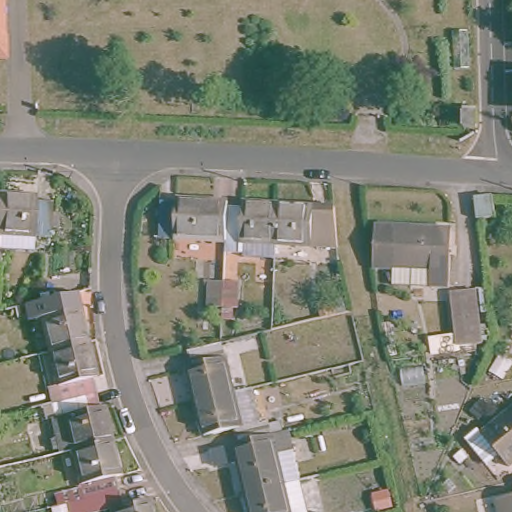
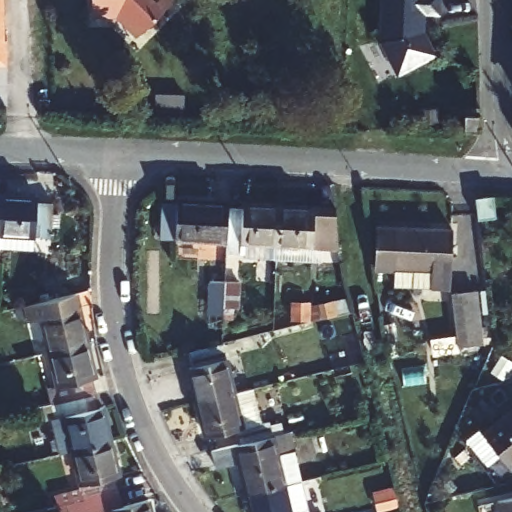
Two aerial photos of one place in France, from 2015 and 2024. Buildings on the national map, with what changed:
new [(141,25),(120,6),(95,6),(94,0),(166,0),(141,25)]
new [(397,75),(381,42),(382,0),(440,0),(439,14),(422,14),(424,34),(435,56),(397,75)]
unchanged [(0,36),(5,35),(4,63),(0,63),(0,36)]
new [(157,105),(158,90),(172,90),(187,91),(186,106),(171,105),(157,105)]
unchanged [(22,202),(37,203),(36,238),(19,238),(17,251),(0,250),(0,197),(21,198),(22,202)]
unchanged [(215,203),(214,239),(161,237),(163,197),(215,200),(215,203)]
unchanged [(507,201),(507,224),(485,224),(483,199),(507,201)]
unchanged [(235,204),(236,201),(266,202),(264,242),(214,239),(215,203),(235,204)]
unchanged [(301,204),(302,207),(317,207),(325,245),(264,242),(266,202),(301,204)]
unchanged [(394,259),(377,258),(377,218),(451,221),(450,277),(432,277),(394,276),(394,259)]
unchanged [(192,278),(207,278),(221,278),(222,304),(206,304),(191,304),(192,278)]
unchanged [(427,327),(451,327),(451,282),(473,282),(476,336),(428,338),(427,327)]
unchanged [(74,309),(78,309),(87,341),(47,351),(39,317),(26,319),(22,305),(70,293),(74,309)]
unchanged [(95,373),(90,376),(93,390),(50,401),(46,385),(55,383),(47,351),(87,341),(95,373)]
unchanged [(217,341),(229,390),(188,400),(179,367),(184,364),(180,350),(217,341)]
unchanged [(229,390),(249,385),(256,417),(263,416),(267,433),(232,441),(229,425),(197,432),(188,400),(229,390)]
unchanged [(93,390),(97,406),(102,405),(110,438),(71,448),(59,451),(50,415),(53,414),(50,401),(93,390)]
unchanged [(461,437),(475,426),(481,430),(512,405),(512,460),(509,463),(498,453),(485,464),(461,437)]
unchanged [(232,441),(267,433),(270,441),(288,436),(297,476),(278,481),(279,483),(244,492),(237,458),(212,464),(207,448),(232,441)]
unchanged [(120,474),(115,476),(119,487),(84,496),(57,503),(55,493),(81,486),(71,448),(110,438),(120,474)]
unchanged [(286,512),(248,512),(244,492),(279,483),(286,512)]
unchanged [(151,497),(154,512),(114,512),(112,507),(93,512),(88,512),(84,496),(119,487),(123,503),(151,497)]
unchanged [(512,492),(512,512),(501,512),(497,495),(512,492)]
unchanged [(314,512),(303,512),(314,510),(314,512)]

